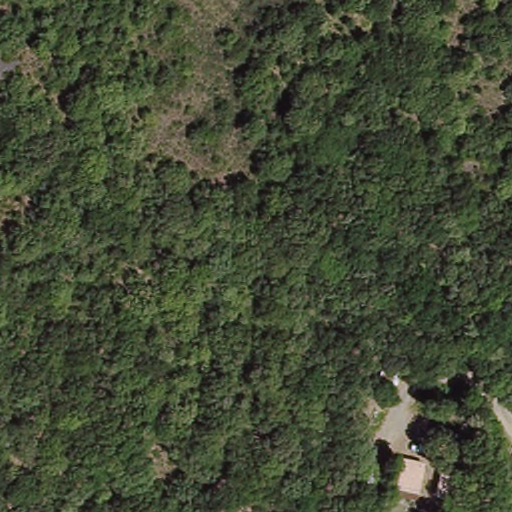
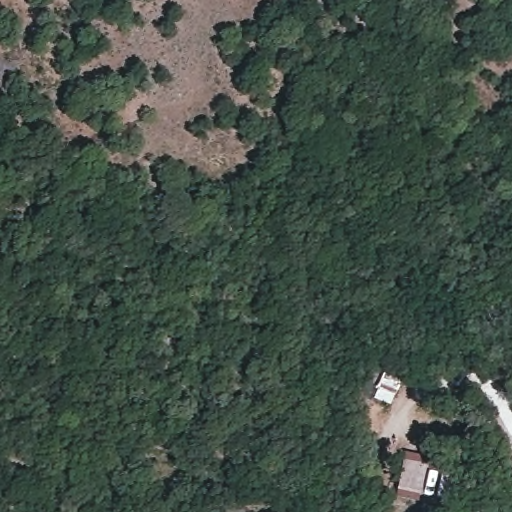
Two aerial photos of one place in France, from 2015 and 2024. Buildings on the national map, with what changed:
unchanged [(404,460),(427,465),(420,496),(397,490),(404,460)]

